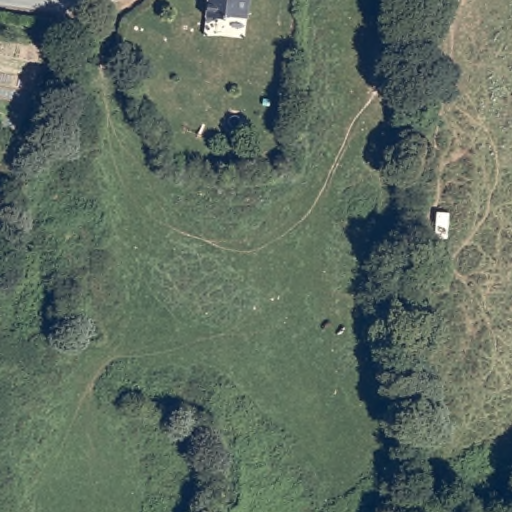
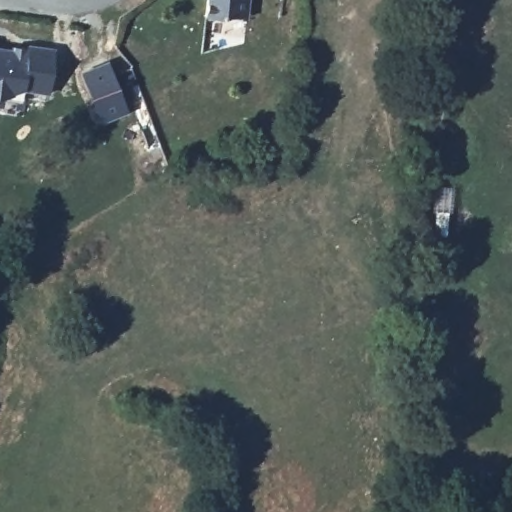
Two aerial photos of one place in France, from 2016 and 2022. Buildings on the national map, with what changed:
unchanged [(228,16),(223,21),(208,17),(210,0),(248,0),(246,19),(228,16)]
new [(25,51),(26,44),(55,48),(48,94),(23,91),(21,102),(0,100),(0,48),(25,51)]
new [(108,62),(128,114),(100,125),(81,73),(108,62)]

